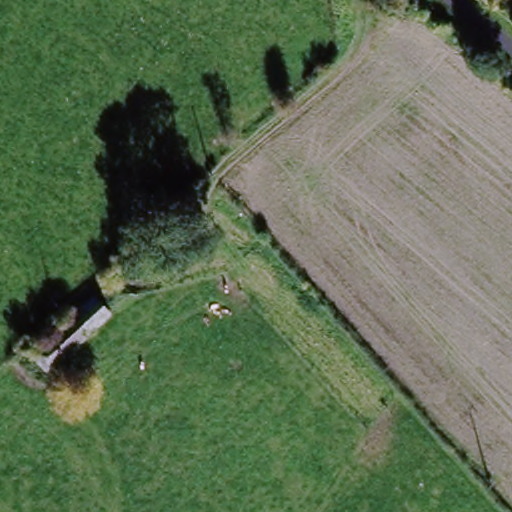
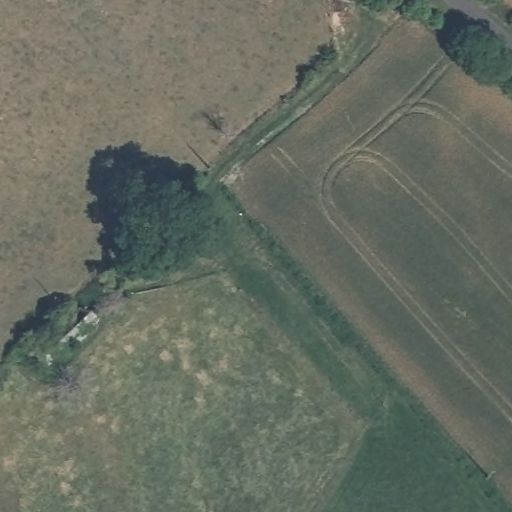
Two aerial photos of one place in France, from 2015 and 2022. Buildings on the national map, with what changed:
unchanged [(91,299),(105,312),(108,316),(60,359),(45,372),(30,356),(91,299)]

